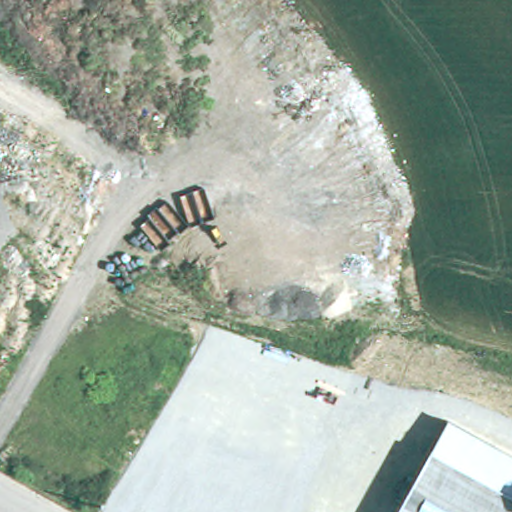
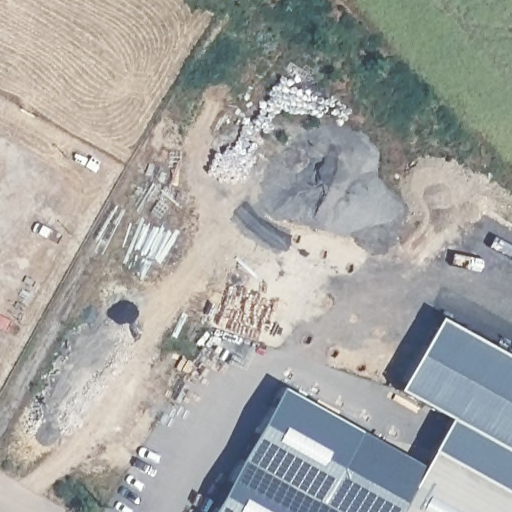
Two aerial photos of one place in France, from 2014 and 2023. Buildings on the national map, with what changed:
new [(449,420),(450,417),(396,388),(436,316),(512,357),(512,454),(449,420)]
new [(396,512),(208,512),(280,386),(423,465),(396,512)]
unchanged [(396,512),(449,420),(512,455),(512,512),(396,512)]

